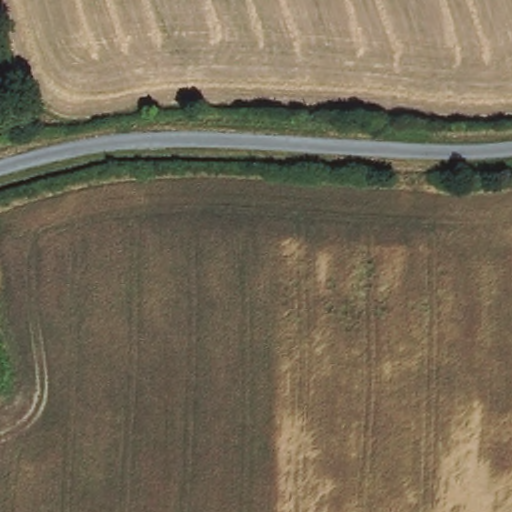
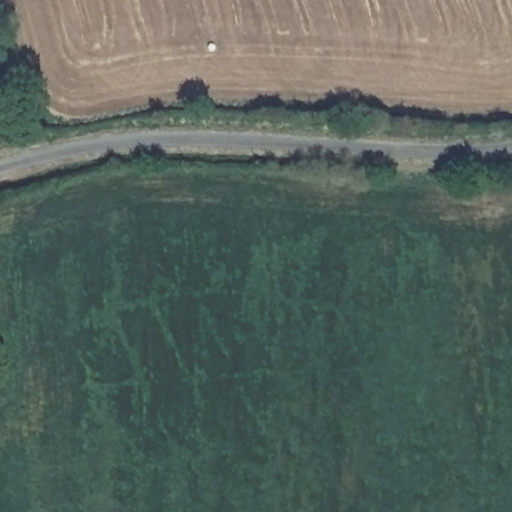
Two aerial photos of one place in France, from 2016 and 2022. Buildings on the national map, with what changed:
unchanged [(4,262),(0,263),(0,246),(4,262)]

